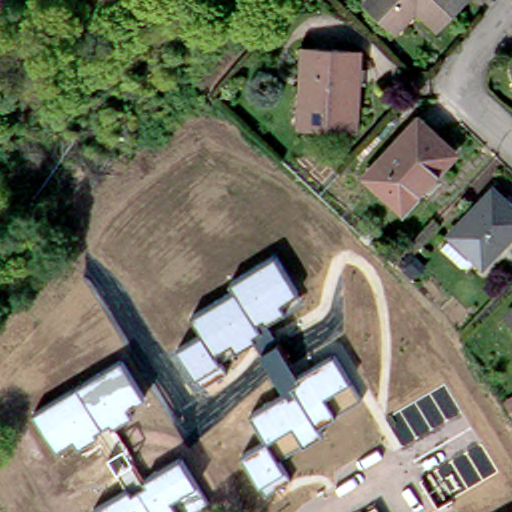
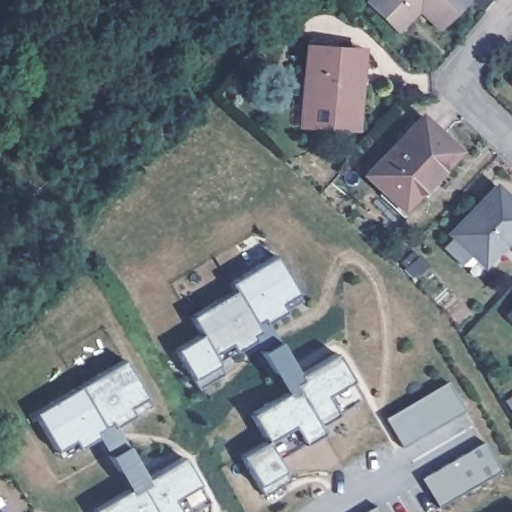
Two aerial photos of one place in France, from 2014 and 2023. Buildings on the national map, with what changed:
unchanged [(391,16),(375,0),(417,0),(395,21),(391,16)]
unchanged [(437,19),(418,0),(456,0),(437,19)]
unchanged [(303,70),(305,42),(360,46),(357,122),(310,120),(301,119),(303,70)]
unchanged [(455,149),(402,208),(365,173),(417,116),(455,149)]
unchanged [(512,204),(512,234),(485,265),(450,234),(493,187),(512,204)]
unchanged [(203,335),(193,317),(235,290),(231,282),(275,255),(298,293),(281,303),(286,311),(269,322),(301,374),(335,352),(363,398),(319,426),(323,433),(278,459),(289,477),(265,493),(243,457),(267,443),(250,414),(285,393),(255,341),(237,351),(232,344),(215,353),(226,370),(202,386),(178,349),(203,335)]
unchanged [(497,302),(512,285),(512,315),(497,302)]
unchanged [(128,407),(132,414),(116,425),(147,477),(182,456),(208,501),(189,512),(97,512),(95,508),(128,490),(97,437),(80,447),(75,439),(57,449),(36,412),(122,357),(145,397),(128,407)]
new [(462,410),(402,446),(386,418),(445,382),(462,410)]
new [(499,471),(438,506),(421,477),(482,441),(499,471)]
new [(365,512),(376,506),(380,512),(365,512)]
unchanged [(511,512),(512,511),(512,512),(511,512)]

